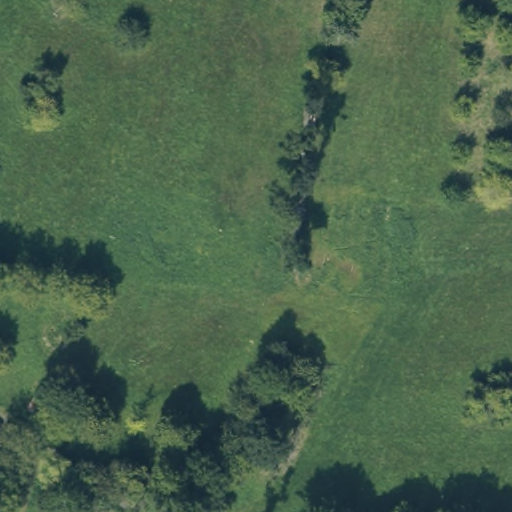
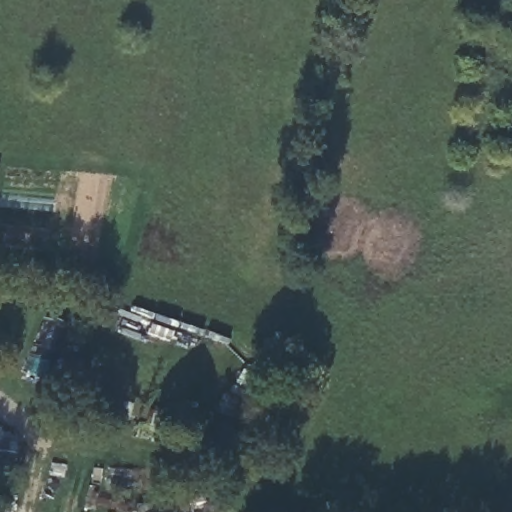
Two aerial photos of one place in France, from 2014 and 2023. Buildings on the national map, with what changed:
unchanged [(0,471),(0,423),(26,436),(22,471),(0,471)]

